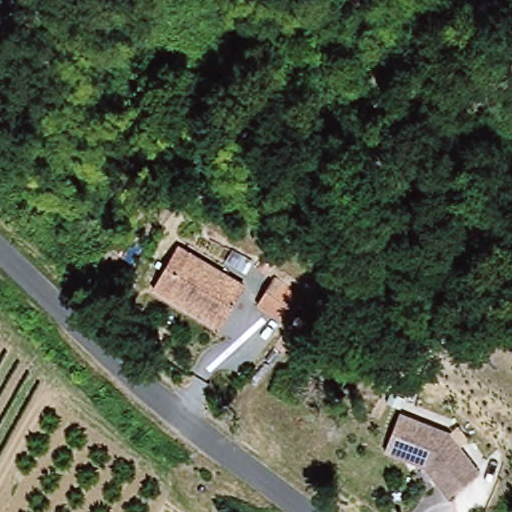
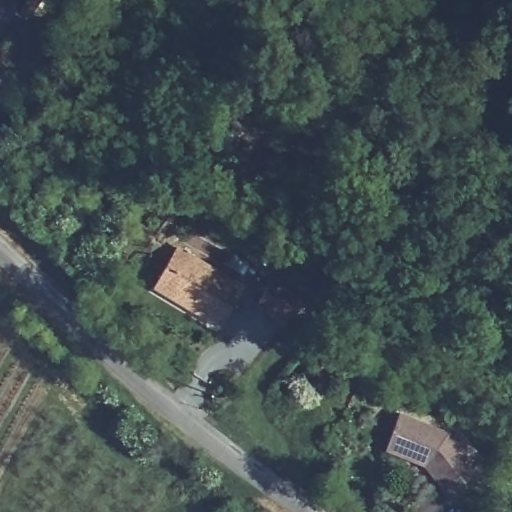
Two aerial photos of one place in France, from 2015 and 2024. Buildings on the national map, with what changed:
unchanged [(178,303),(158,291),(182,249),(242,281),(221,318),(217,328),(178,303)]
unchanged [(281,280),(305,301),(282,328),(258,307),(281,280)]
unchanged [(382,448),(397,412),(450,435),(424,465),(382,448)]
unchanged [(478,471),(447,495),(424,465),(450,435),(478,471)]

